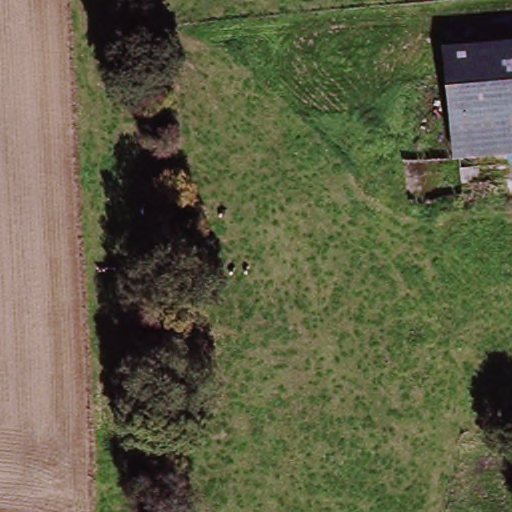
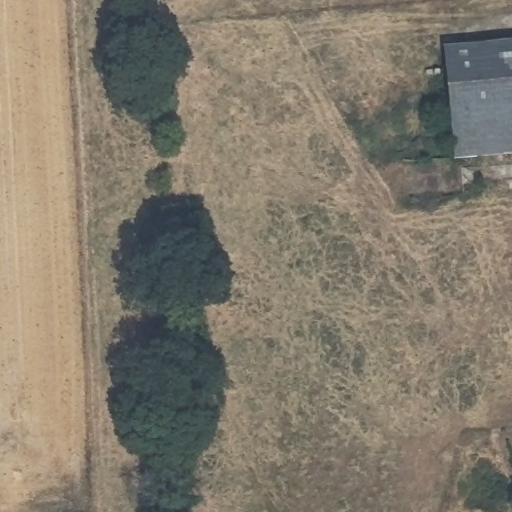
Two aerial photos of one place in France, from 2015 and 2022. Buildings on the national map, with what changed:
unchanged [(512,44),(512,157),(455,163),(444,50),(512,44)]

